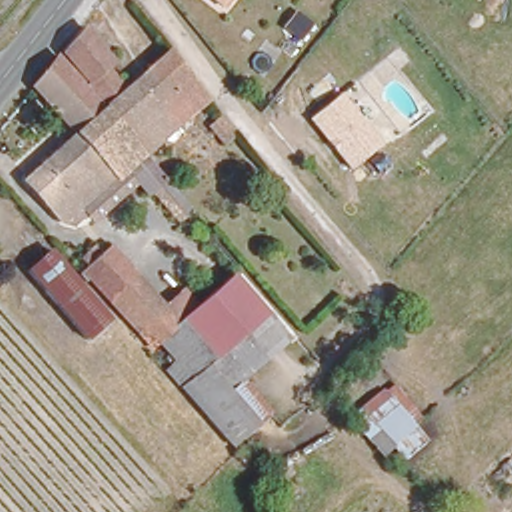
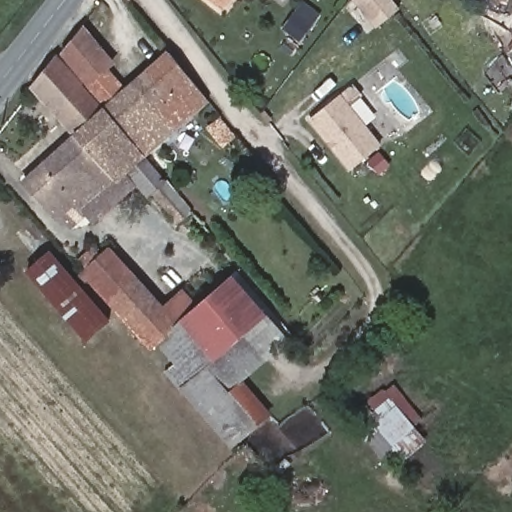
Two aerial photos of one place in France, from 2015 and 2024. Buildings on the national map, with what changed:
unchanged [(215,0),(228,0),(223,6),(215,0)]
new [(392,0),(400,10),(376,29),(351,0),(392,0)]
unchanged [(61,51),(81,30),(111,65),(106,70),(90,82),(61,51)]
unchanged [(90,82),(106,70),(123,90),(168,51),(208,100),(141,159),(82,89),(90,82)]
unchanged [(82,89),(141,159),(171,193),(191,216),(179,224),(158,196),(151,200),(127,169),(80,210),(77,208),(59,222),(23,179),(73,135),(35,85),(56,59),(82,89)]
unchanged [(380,145),(351,168),(310,117),(339,94),(380,145)]
unchanged [(232,153),(225,145),(210,127),(222,118),(242,144),(232,153)]
unchanged [(160,300),(214,254),(290,339),(242,380),(273,411),(234,448),(148,353),(79,275),(86,268),(79,256),(94,241),(102,253),(114,245),(160,300)]
unchanged [(26,275),(50,255),(105,320),(83,341),(26,275)]
unchanged [(413,423),(426,441),(402,462),(389,450),(381,459),(345,420),(395,380),(423,420),(413,423)]

